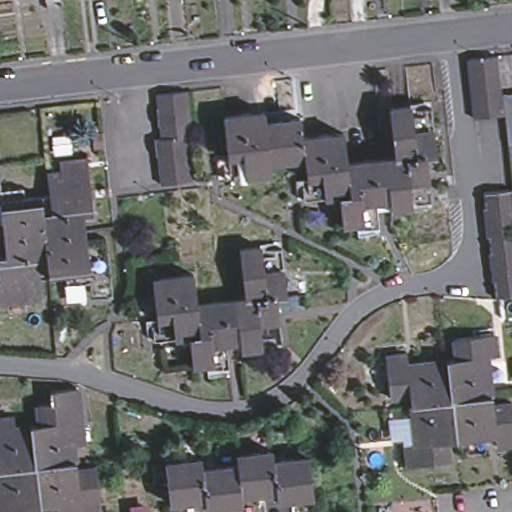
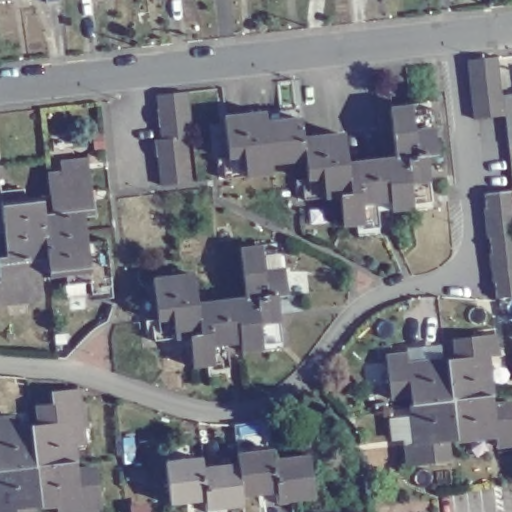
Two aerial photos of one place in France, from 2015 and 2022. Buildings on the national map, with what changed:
unchanged [(466,109),(465,95),(463,80),(461,65),(493,63),(495,76),(497,90),(498,105),(500,120),(467,124),(466,109)]
unchanged [(159,170),(157,156),(155,156),(153,140),(161,140),(160,126),(157,126),(155,110),(157,110),(156,95),(185,92),(187,107),(189,122),(190,137),(185,137),(187,151),(188,166),(190,182),(160,185),(159,170)]
unchanged [(393,159),(393,158),(388,109),(408,106),(407,104),(428,101),(435,155),(425,156),(425,155),(393,159)]
unchanged [(502,102),(512,101),(512,150),(507,151),(505,135),(502,102)]
unchanged [(270,174),(217,180),(215,159),(227,157),(222,117),(263,113),(264,122),(269,164),(270,174)]
unchanged [(301,138),(303,160),(269,164),(264,122),(299,119),(301,138)]
unchanged [(345,164),(348,194),(338,195),(297,200),(294,180),(305,179),(303,160),(301,138),(342,135),(345,164)]
unchanged [(393,159),(425,155),(425,156),(431,208),(410,210),(410,209),(390,210),(388,195),(385,159),(393,158),(393,159)]
unchanged [(385,159),(388,195),(375,196),(378,233),(356,235),(355,224),(340,225),(338,195),(348,194),(345,164),(381,160),(385,159)]
unchanged [(85,237),(45,241),(40,201),(48,200),(47,180),(60,179),(58,167),(86,165),(92,220),(83,221),(85,237)]
unchanged [(488,293),(487,288),(487,277),(485,263),(483,248),(482,233),(480,218),(478,204),(477,187),(508,185),(510,200),(512,215),(512,291),(488,293)]
unchanged [(3,236),(0,236),(0,196),(22,194),(23,203),(40,201),(45,241),(4,246),(3,236)]
unchanged [(45,241),(85,237),(85,238),(85,246),(106,244),(112,303),(90,305),(88,287),(65,290),(65,280),(49,281),(45,241)]
unchanged [(40,282),(40,302),(0,307),(0,262),(5,261),(4,246),(45,241),(49,281),(48,281),(40,282)]
unchanged [(201,376),(200,365),(187,366),(183,336),(140,341),(140,333),(140,320),(152,319),(150,279),(187,275),(190,304),(214,301),(230,300),(239,298),(234,249),(253,247),(252,244),(274,242),(280,294),(270,295),(272,318),(276,348),(255,350),(255,348),(235,350),(233,335),(219,335),(222,374),(201,376)]
unchanged [(455,400),(450,359),(460,358),(457,338),(498,335),(500,355),(490,356),(495,396),(455,400)]
unchanged [(415,404),(415,403),(413,395),(394,397),(388,357),(410,354),(411,363),(450,359),(455,400),(415,404)]
unchanged [(499,436),(459,440),(455,400),(495,396),(496,405),(512,403),(512,444),(500,445),(499,436)]
unchanged [(37,415),(50,413),(49,401),(77,398),(82,454),(73,455),(75,470),(35,475),(30,435),(39,434),(37,415)]
unchanged [(452,461),(412,465),(409,444),(418,443),(415,404),(455,400),(459,440),(458,440),(450,441),(452,461)]
unchanged [(14,436),(30,435),(35,475),(0,479),(0,428),(13,427),(14,436)]
unchanged [(272,470),(275,498),(257,500),(257,503),(240,505),(236,473),(235,464),(271,460),(272,470)]
unchanged [(307,466),(312,506),(295,508),(295,506),(277,508),(275,498),(272,470),(307,466)]
unchanged [(202,477),(204,506),(185,508),(186,511),(180,512),(168,512),(163,472),(200,468),(202,477)]
unchanged [(75,480),(96,478),(99,512),(39,512),(35,475),(75,470),(75,480)]
unchanged [(240,505),(241,512),(205,512),(204,506),(202,477),(236,473),(240,505)]
unchanged [(39,512),(0,512),(0,479),(35,475),(39,512)]

